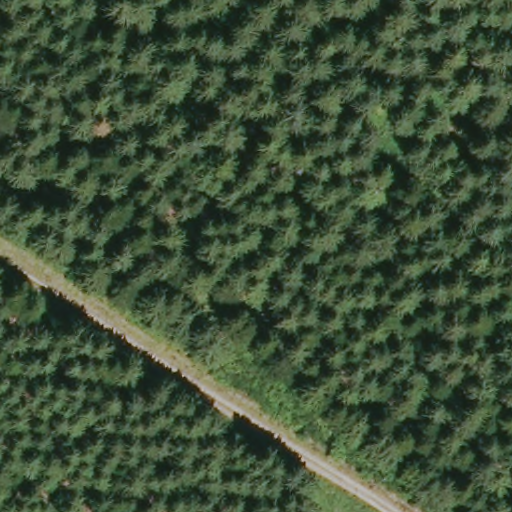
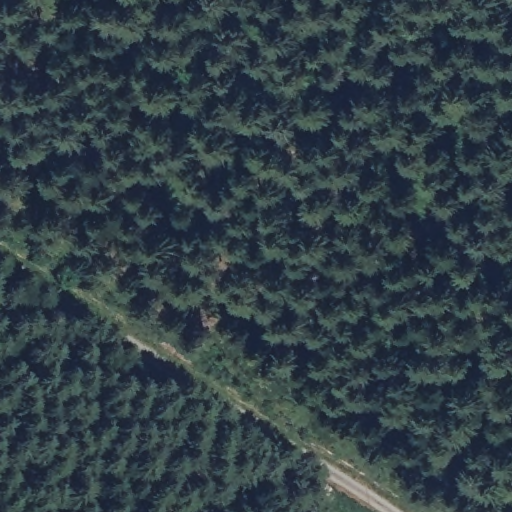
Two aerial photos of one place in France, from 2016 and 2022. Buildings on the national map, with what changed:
[]

